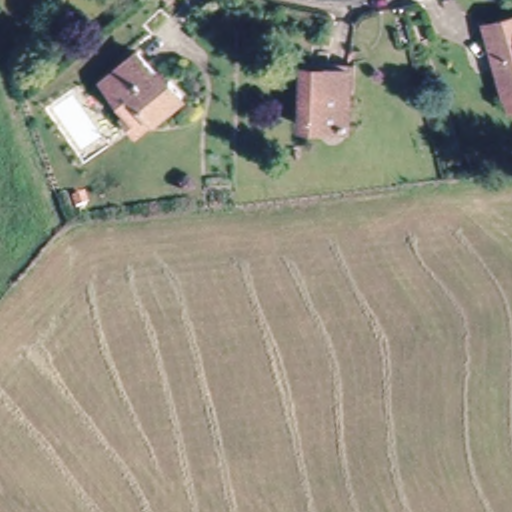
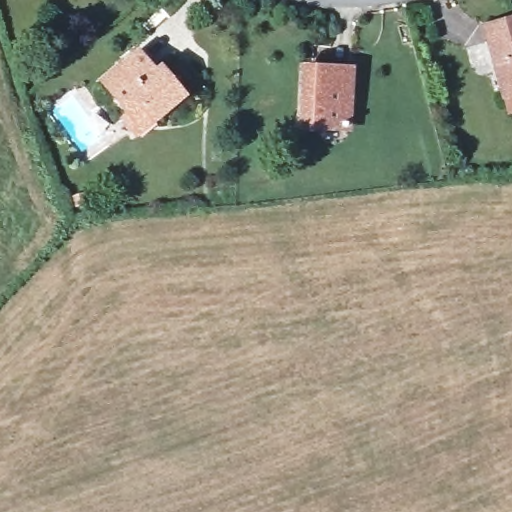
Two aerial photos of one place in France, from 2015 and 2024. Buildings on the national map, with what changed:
unchanged [(511,113),(506,97),(503,98),(484,27),(512,19),(512,112),(511,113)]
unchanged [(160,79),(165,75),(179,90),(148,116),(131,130),(117,114),(124,109),(97,78),(134,47),(160,79)]
unchanged [(304,69),(350,71),(347,129),(301,127),(304,69)]

